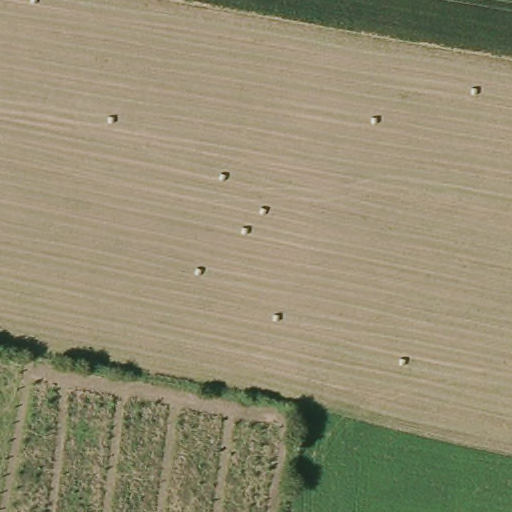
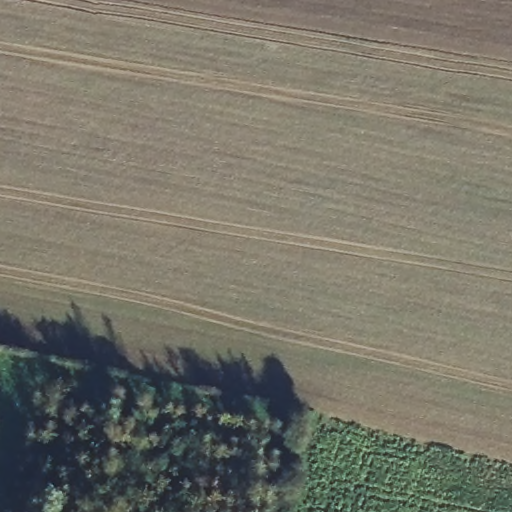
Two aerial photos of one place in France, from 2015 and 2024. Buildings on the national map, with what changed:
[]

